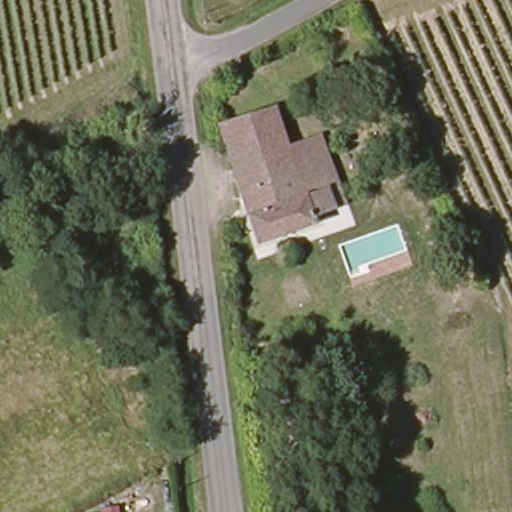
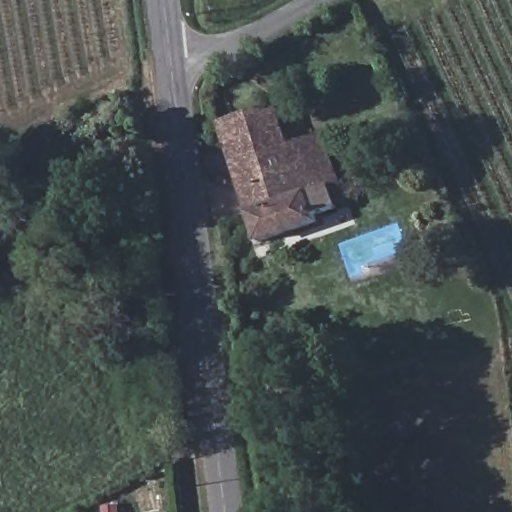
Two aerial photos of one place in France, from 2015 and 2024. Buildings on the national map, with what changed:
unchanged [(288,146),(307,144),(323,141),(335,173),(338,181),(344,179),(347,186),(343,187),(346,194),(350,192),(356,205),(348,208),(349,212),(319,220),(322,226),(277,238),(264,242),(253,204),(237,143),(230,119),(250,113),(262,110),(267,126),(269,135),(284,131),(288,146)]

